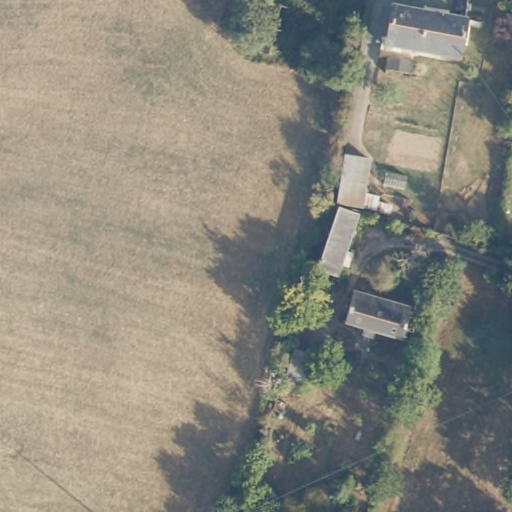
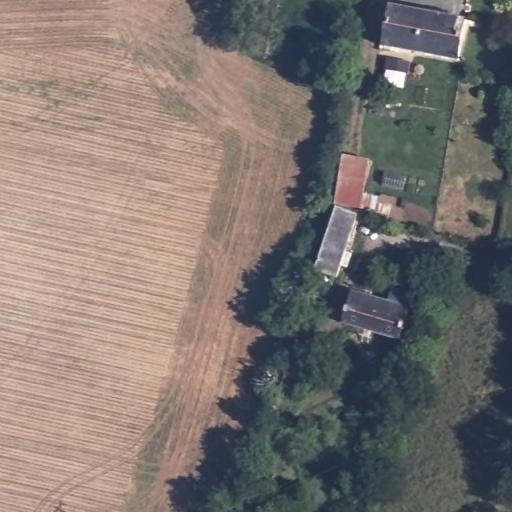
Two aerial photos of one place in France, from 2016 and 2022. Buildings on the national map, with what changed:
unchanged [(459,59),(384,49),(391,7),(464,20),(459,59)]
unchanged [(369,156),(366,186),(391,193),(388,214),(362,209),(338,277),(317,267),(337,205),(344,154),(369,156)]
unchanged [(356,287),(411,306),(401,337),(345,319),(356,287)]
unchanged [(509,319),(512,311),(512,320),(509,319)]
unchanged [(293,387),(284,383),(295,347),(300,349),(313,352),(302,390),(293,387)]

